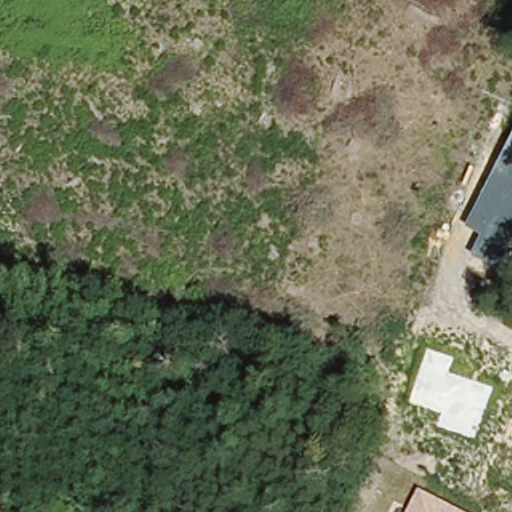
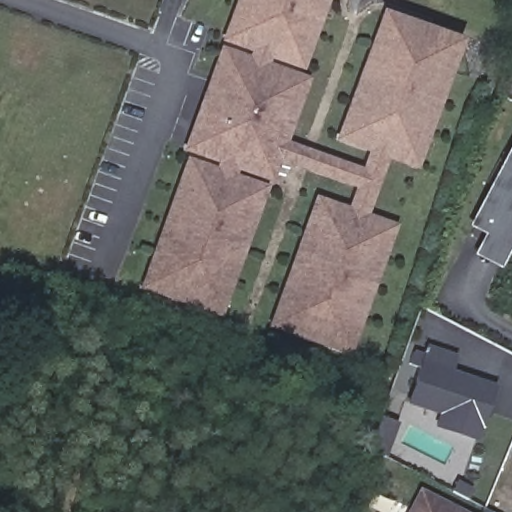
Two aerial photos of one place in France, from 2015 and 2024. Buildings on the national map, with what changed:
new [(351,356),(268,327),(315,196),(347,206),(354,188),(280,162),(273,184),(238,171),(237,176),(269,186),(224,317),(141,288),(186,157),(216,167),(218,163),(183,151),(220,46),(248,56),(249,52),(249,51),(220,41),(234,0),(328,0),(303,71),(270,59),(268,65),(308,79),(286,142),(361,167),(366,152),(334,141),(381,10),(463,39),(418,169),(386,159),(368,214),(398,224),(351,356)]
unchanged [(500,267),(472,254),(481,235),(466,227),(512,135),(512,245),(500,267)]
unchanged [(474,441),(436,427),(441,413),(407,402),(426,348),(454,357),(449,372),(493,387),(474,441)]
new [(383,417),(400,424),(387,459),(372,451),(383,417)]
unchanged [(420,488),(467,512),(408,512),(420,488)]

